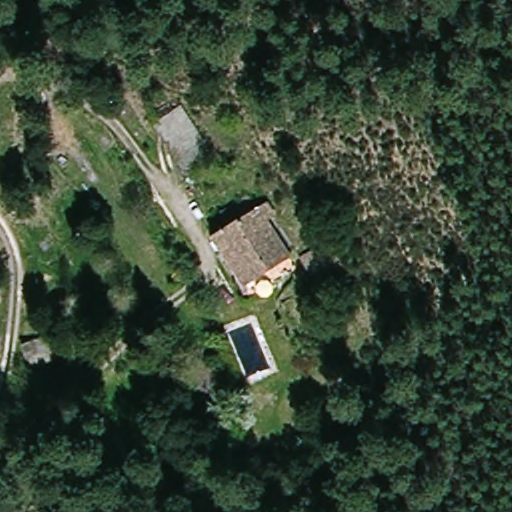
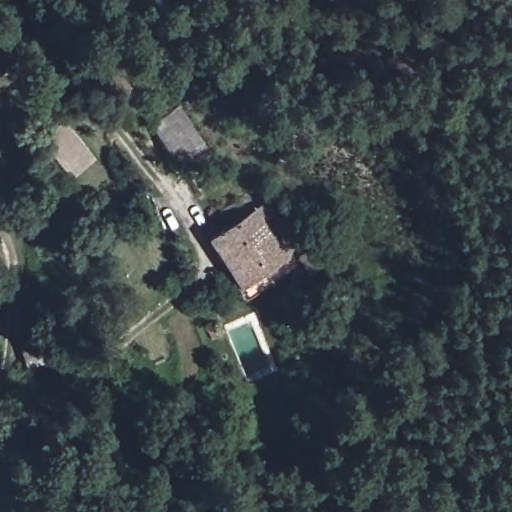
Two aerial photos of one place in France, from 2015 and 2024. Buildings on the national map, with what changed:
unchanged [(190,174),(155,123),(183,103),(215,154),(190,174)]
new [(76,178),(40,140),(62,119),(97,157),(76,178)]
unchanged [(290,257),(247,286),(213,237),(256,207),(290,257)]

